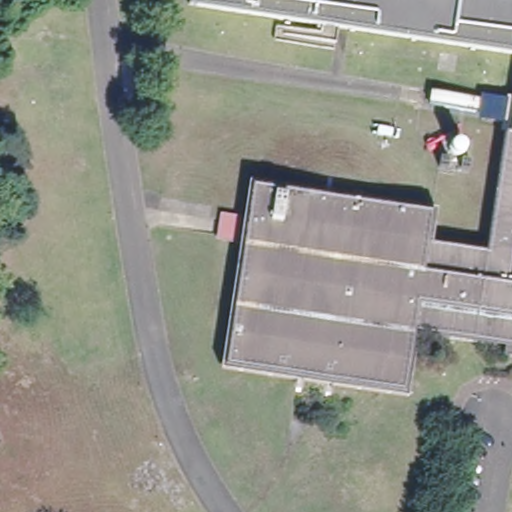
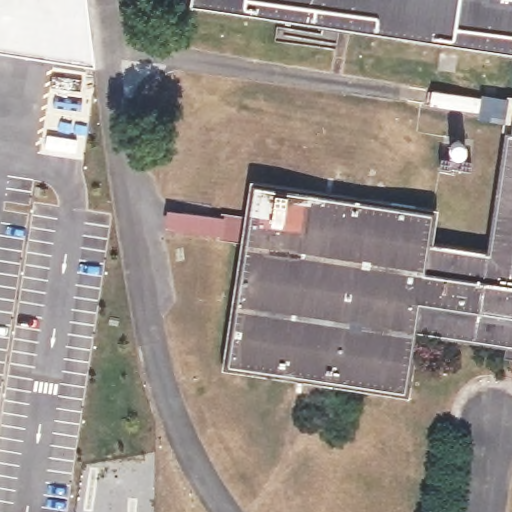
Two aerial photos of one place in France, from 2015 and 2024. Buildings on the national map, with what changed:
new [(91,15),(95,64),(32,57),(0,52),(0,0),(88,0),(91,15)]
unchanged [(184,2),(184,0),(512,0),(512,54),(184,2)]
unchanged [(252,192),(431,217),(427,240),(486,248),(502,129),(511,130),(512,120),(512,347),(413,333),(405,395),(227,371),(252,192)]
new [(45,134),(77,139),(74,156),(42,151),(45,134)]

